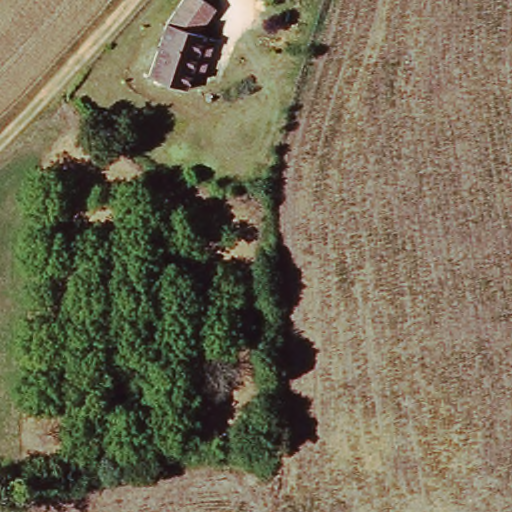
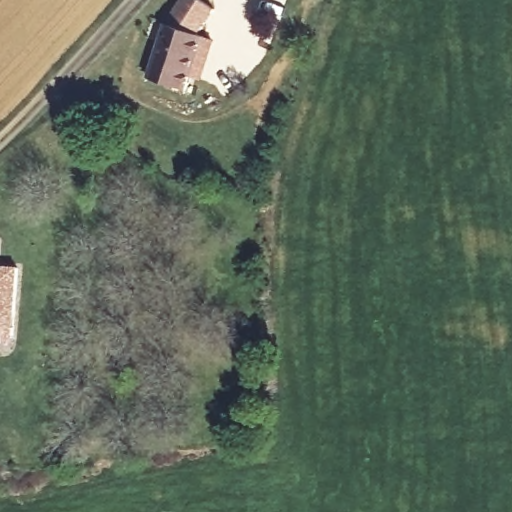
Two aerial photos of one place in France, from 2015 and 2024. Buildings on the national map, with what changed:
unchanged [(154,81),(164,25),(180,0),(212,0),(215,2),(197,29),(204,34),(192,87),(154,81)]
new [(0,339),(0,267),(20,267),(16,339),(0,339)]

